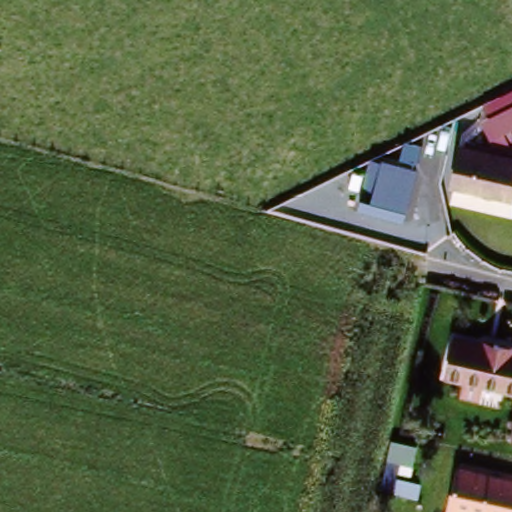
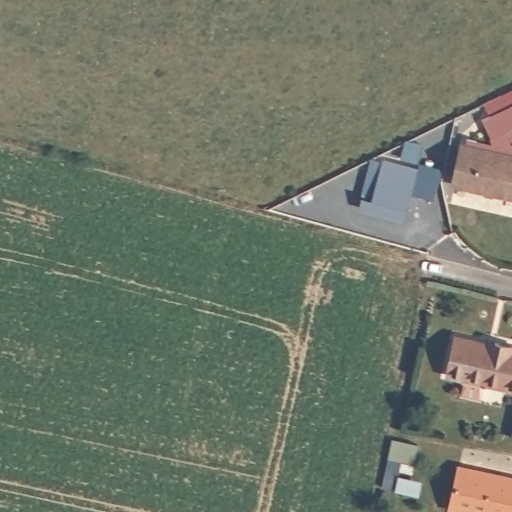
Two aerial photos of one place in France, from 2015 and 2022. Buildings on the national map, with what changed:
unchanged [(459,140),(490,142),(481,132),(490,111),(485,101),(512,89),(512,132),(507,134),(512,145),(512,179),(507,198),(447,186),(459,140)]
unchanged [(407,158),(395,154),(397,145),(400,138),(401,138),(407,140),(419,143),(415,151),(413,160),(407,158)]
unchanged [(387,215),(355,205),(362,187),(372,156),(392,162),(414,168),(402,209),(399,218),(387,215)]
unchanged [(445,378),(457,339),(492,348),(495,344),(512,348),(512,349),(512,393),(445,378)]
unchanged [(507,435),(512,420),(512,436),(507,435)]
unchanged [(452,509),(462,467),(512,479),(512,512),(458,512),(452,509)]

